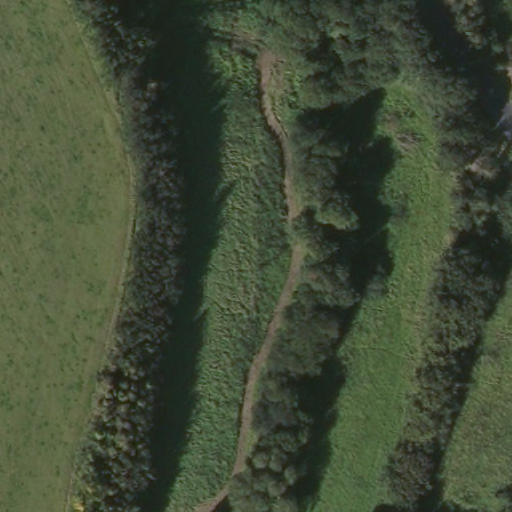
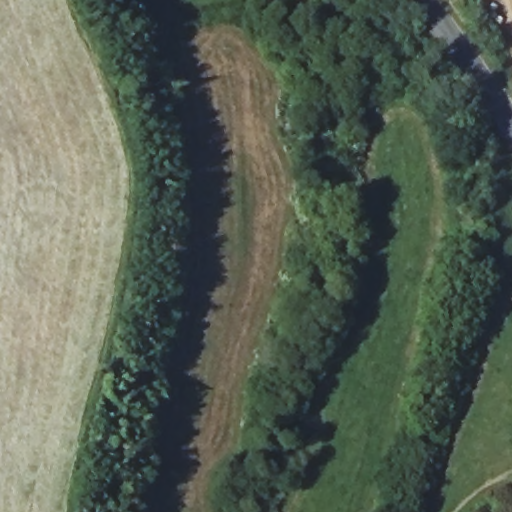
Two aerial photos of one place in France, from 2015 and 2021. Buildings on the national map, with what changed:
[]

